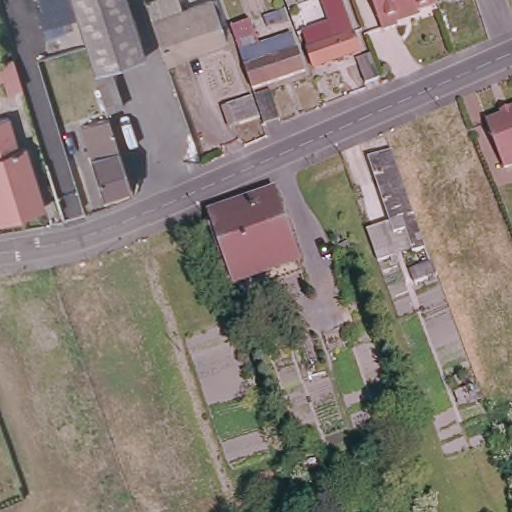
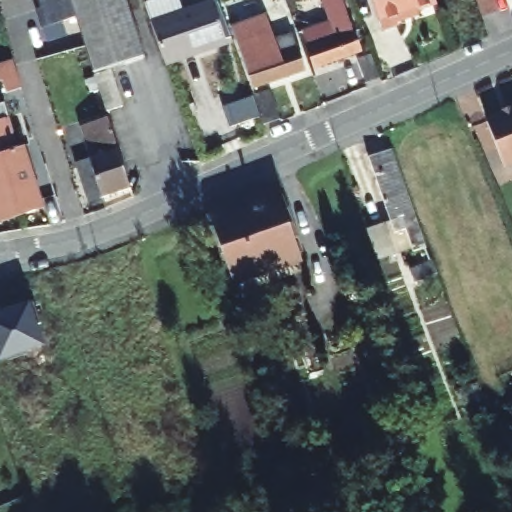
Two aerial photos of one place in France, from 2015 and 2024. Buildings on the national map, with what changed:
unchanged [(77,16),(44,27),(35,0),(72,0),(77,16)]
unchanged [(145,56),(113,67),(125,105),(107,111),(103,97),(100,90),(96,77),(77,16),(72,0),(128,0),(145,56)]
unchanged [(155,20),(148,1),(150,0),(199,0),(200,4),(211,0),(222,0),(231,23),(235,33),(237,40),(200,52),(175,61),(168,63),(166,56),(155,20)]
unchanged [(323,0),(342,0),(353,31),(355,31),(362,51),(315,68),(301,32),(330,22),(323,0)]
unchanged [(438,3),(401,16),(397,17),(400,25),(385,30),(375,0),(437,0),(438,3)]
unchanged [(240,51),(293,32),(306,67),(253,87),(240,51)]
unchanged [(382,76),(366,82),(358,58),(373,52),(382,76)]
unchanged [(22,86),(8,91),(5,78),(0,80),(0,64),(14,59),(22,86)]
unchanged [(255,94),(270,89),(279,114),(264,119),(255,94)]
unchanged [(252,96),(259,116),(231,126),(225,105),(252,96)]
unchanged [(107,111),(132,187),(103,196),(90,154),(98,152),(90,122),(102,119),(96,100),(103,97),(107,111)]
unchanged [(0,146),(0,119),(8,116),(18,147),(26,145),(45,205),(20,212),(0,146)]
unchanged [(0,219),(0,146),(20,212),(0,219)]
unchanged [(395,230),(370,159),(378,157),(393,152),(426,246),(415,249),(407,225),(403,227),(395,230)]
unchanged [(91,200),(60,210),(51,180),(50,175),(80,165),(91,200)]
unchanged [(300,260),(238,281),(214,214),(276,192),(300,260)]
demolished [(432,263),(450,302),(427,311),(413,270),(432,263)]
new [(45,346),(0,362),(0,311),(29,303),(45,346)]

